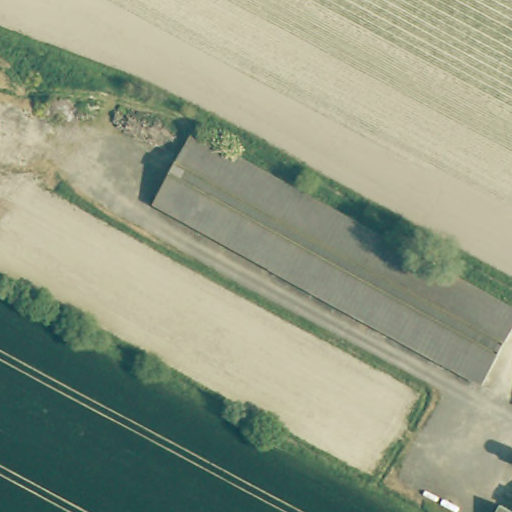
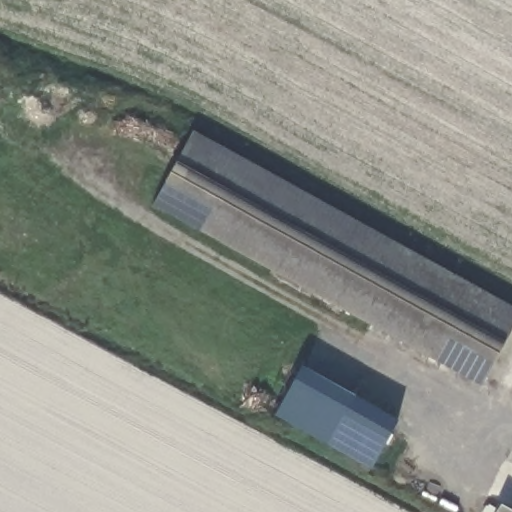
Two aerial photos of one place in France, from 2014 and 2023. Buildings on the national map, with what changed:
unchanged [(154,203),(191,135),(512,312),(512,330),(483,385),(154,203)]
new [(371,470),(273,416),(301,368),(397,421),(371,470)]
unchanged [(497,512),(500,507),(510,512),(497,512)]

